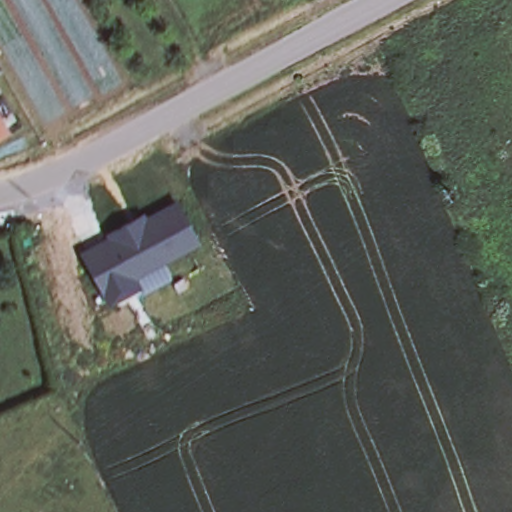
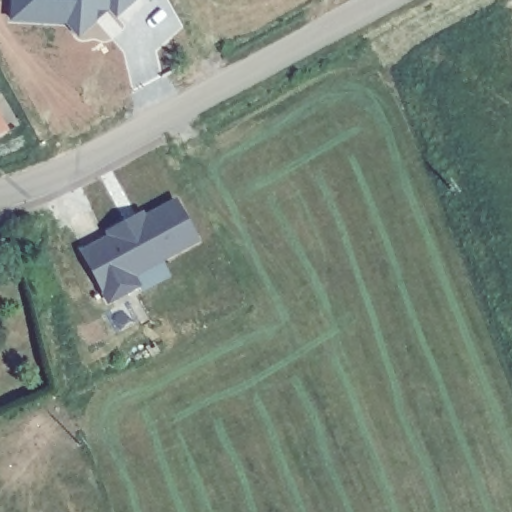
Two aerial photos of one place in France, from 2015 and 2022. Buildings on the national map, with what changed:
new [(117,18),(110,8),(80,36),(68,24),(10,20),(12,0),(137,0),(117,18)]
unchanged [(8,128),(0,132),(0,115),(8,128)]
unchanged [(105,240),(105,237),(142,215),(146,217),(176,201),(196,245),(134,275),(138,285),(140,289),(106,306),(105,303),(80,253),(105,240)]

